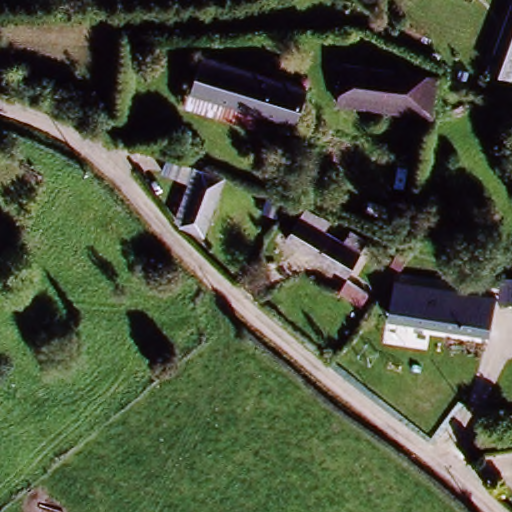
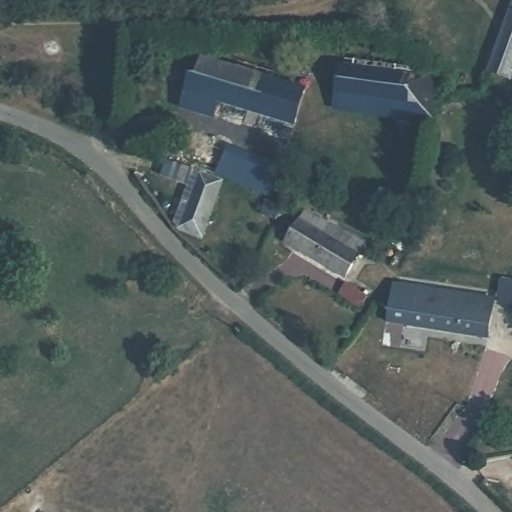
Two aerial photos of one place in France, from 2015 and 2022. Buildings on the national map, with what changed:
unchanged [(485,74),(508,0),(512,2),(512,83),(485,74)]
unchanged [(298,83),(288,125),(214,107),(211,120),(179,112),(192,57),(298,83)]
unchanged [(340,71),(435,80),(432,117),(337,107),(340,71)]
unchanged [(222,179),(207,234),(183,227),(198,173),(222,179)]
unchanged [(300,211),(334,228),(330,239),(320,262),(263,235),(275,213),(294,222),(300,211)]
unchanged [(342,279),(333,296),(314,285),(322,268),(342,279)]
unchanged [(478,299),(480,279),(512,279),(512,300),(478,299)]
unchanged [(477,316),(394,305),(396,287),(478,299),(477,316)]
unchanged [(472,339),(377,327),(380,303),(394,305),(477,316),(472,339)]

